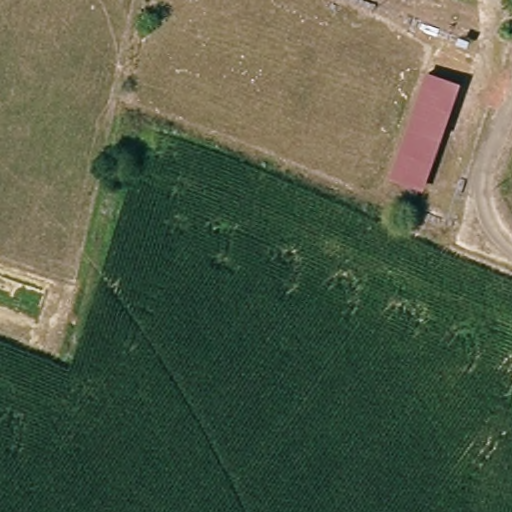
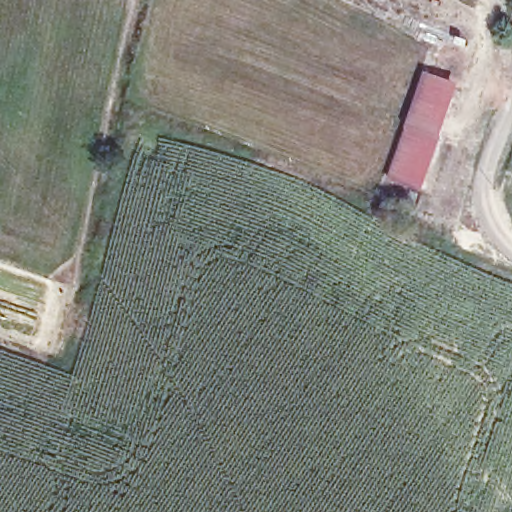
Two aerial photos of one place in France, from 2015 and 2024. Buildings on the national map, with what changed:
unchanged [(455,85),(437,138),(435,137),(417,190),(389,181),(409,127),(406,125),(425,72),(455,85)]

